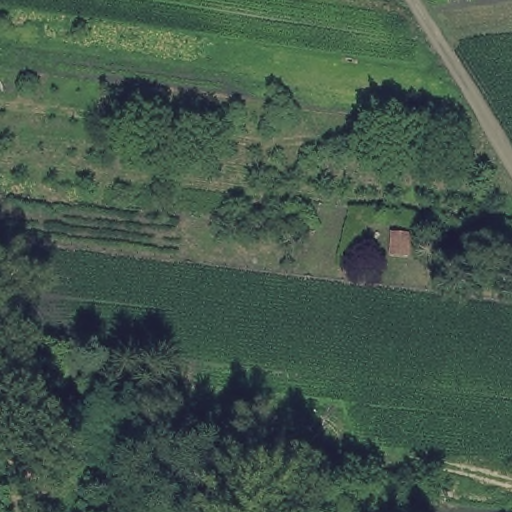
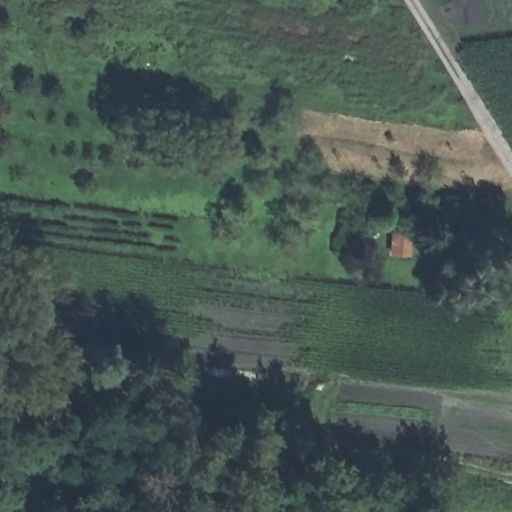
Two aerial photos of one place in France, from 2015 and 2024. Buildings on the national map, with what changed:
unchanged [(418,232),(414,258),(386,254),(394,230),(418,232)]

